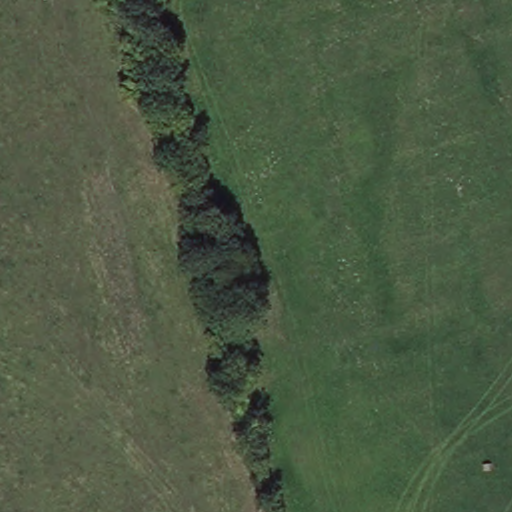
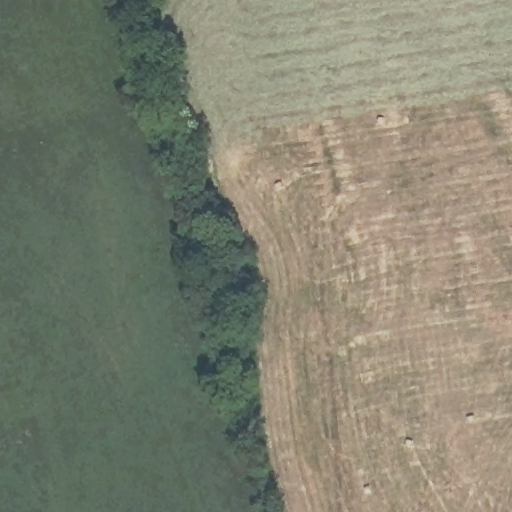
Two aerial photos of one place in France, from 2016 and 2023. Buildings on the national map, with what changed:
[]

